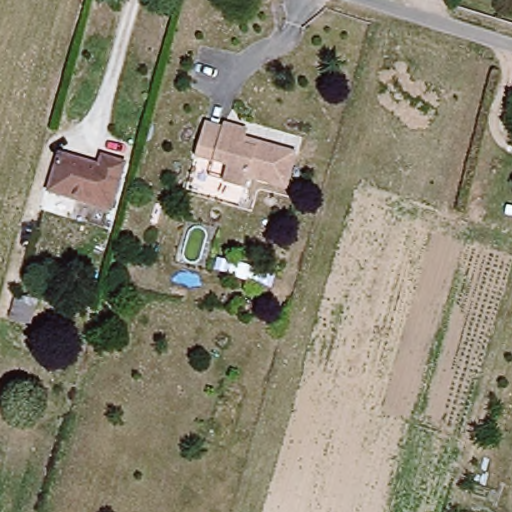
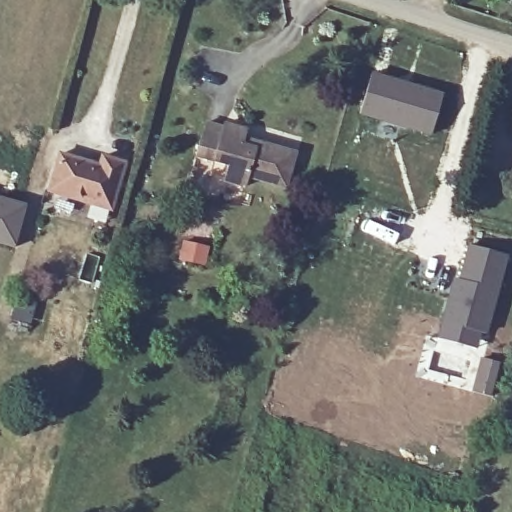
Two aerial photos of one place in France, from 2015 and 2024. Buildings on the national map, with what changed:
new [(432,128),(360,108),(371,69),(443,89),(432,128)]
unchanged [(284,191),(275,188),(247,180),(245,190),(221,183),(225,171),(201,164),(193,161),(202,126),(211,129),(217,132),(218,126),(244,134),(242,138),(285,152),(294,155),(284,191)]
unchanged [(44,194),(55,157),(87,166),(92,152),(114,159),(122,162),(107,212),(99,210),(44,194)]
new [(15,247),(0,244),(0,195),(27,203),(15,247)]
new [(453,276),(456,277),(467,243),(508,255),(486,334),(482,333),(477,349),(435,337),(453,276)]
new [(17,289),(39,296),(30,326),(9,320),(17,289)]
new [(480,357),(500,362),(491,397),(471,391),(480,357)]

